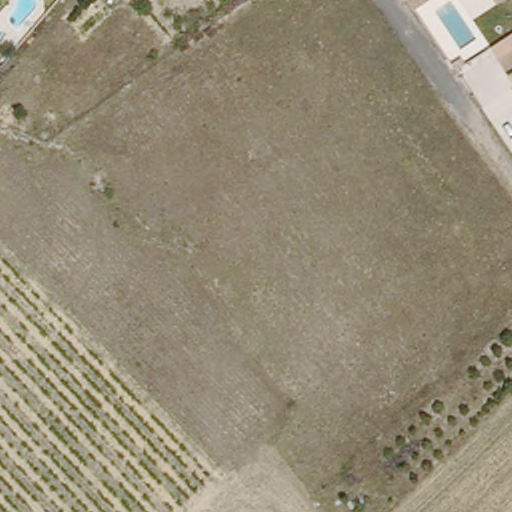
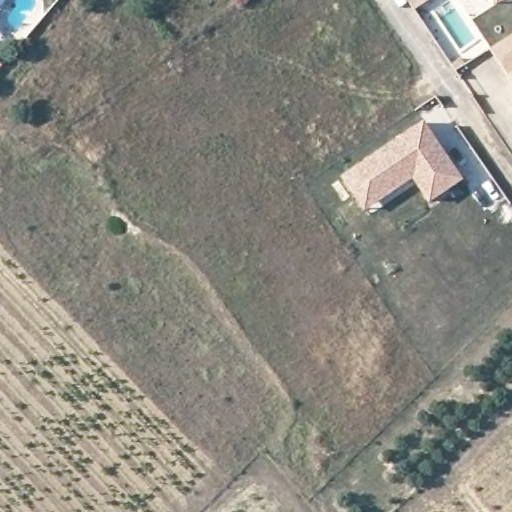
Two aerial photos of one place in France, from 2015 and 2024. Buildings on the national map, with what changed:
new [(412,9),(406,0),(426,0),(412,9)]
unchanged [(501,3),(498,0),(506,0),(501,3)]
unchanged [(512,50),(512,84),(511,83),(496,61),(512,50)]
new [(421,123),(437,147),(424,156),(433,170),(447,160),(460,180),(428,202),(411,177),(388,193),(375,188),(358,200),(342,177),(421,123)]

